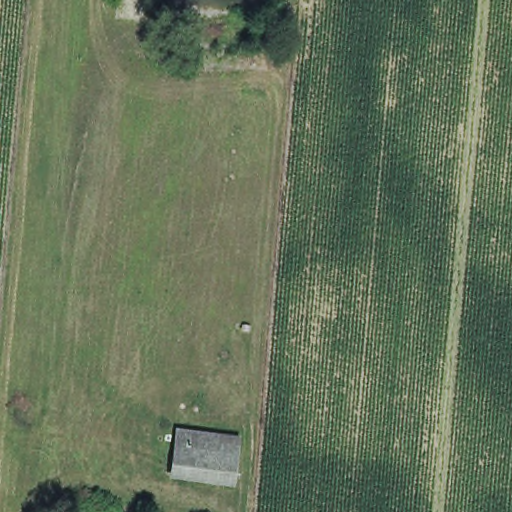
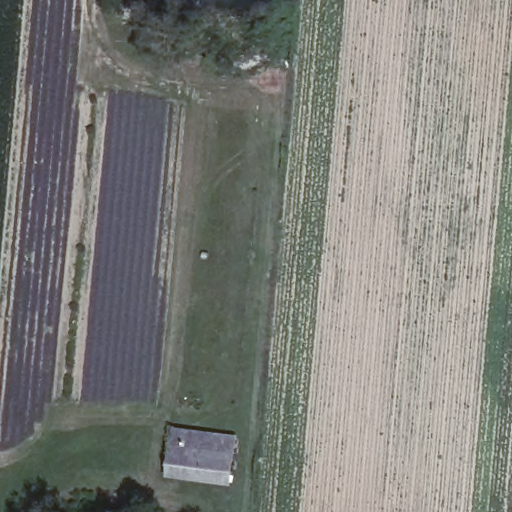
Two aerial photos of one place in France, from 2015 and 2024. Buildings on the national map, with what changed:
unchanged [(240,438),(235,464),(180,457),(185,431),(240,438)]

